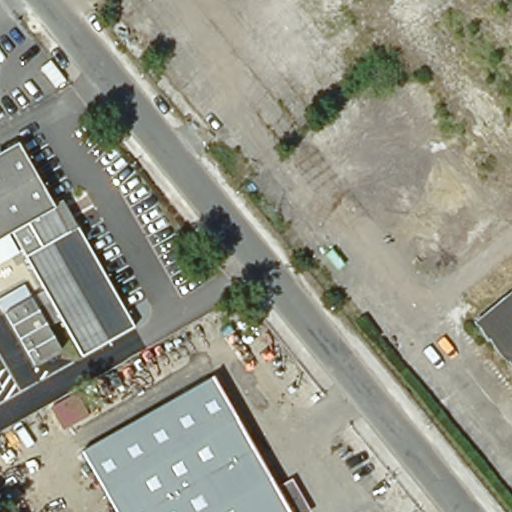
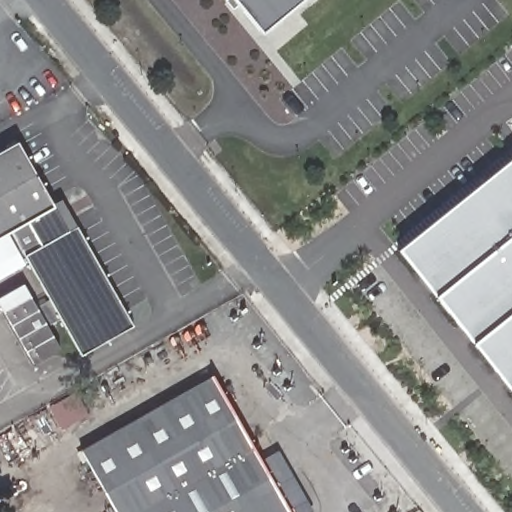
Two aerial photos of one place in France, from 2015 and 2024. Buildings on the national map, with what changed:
new [(225,0),(226,0),(308,0),(265,36),(239,5),(234,10),(225,0)]
demolished [(300,6),(294,0),(307,0),(300,6)]
demolished [(367,126),(401,169),(451,232),(426,253),(340,147),(362,130),(367,126)]
unchanged [(39,179),(47,174),(77,226),(134,325),(81,355),(62,321),(51,300),(26,256),(42,246),(29,222),(0,239),(0,154),(18,144),(39,179)]
new [(512,159),(512,392),(398,250),(512,159)]
demolished [(434,195),(430,191),(428,186),(428,181),(430,176),(432,171),(436,168),(441,166),(446,166),(451,168),(456,170),(459,174),(461,179),(461,184),(460,189),(457,194),(454,197),(449,199),(443,200),(438,198),(434,195)]
demolished [(491,199),(476,211),(465,197),(480,185),(491,199)]
demolished [(467,206),(472,213),(460,224),(454,217),(467,206)]
new [(42,246),(26,256),(29,261),(0,280),(0,239),(29,222),(42,246)]
demolished [(476,322),(512,294),(512,366),(476,322)]
unchanged [(5,314),(32,298),(38,308),(51,300),(62,321),(49,328),(62,351),(35,366),(5,314)]
unchanged [(81,451),(214,376),(276,487),(290,479),(308,512),(116,512),(114,507),(81,451)]

